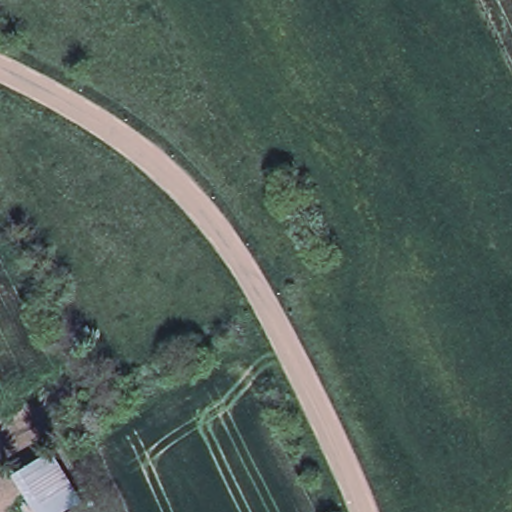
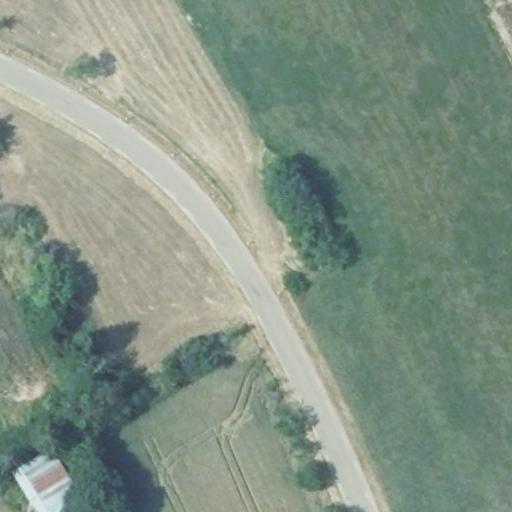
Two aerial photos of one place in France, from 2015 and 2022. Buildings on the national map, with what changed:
unchanged [(55,450),(81,499),(60,512),(35,512),(13,472),(55,450)]

